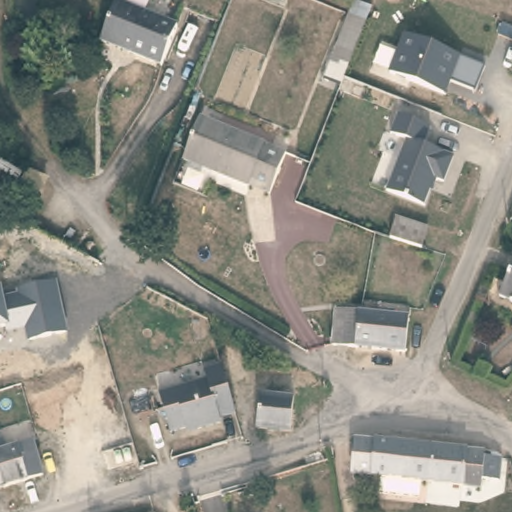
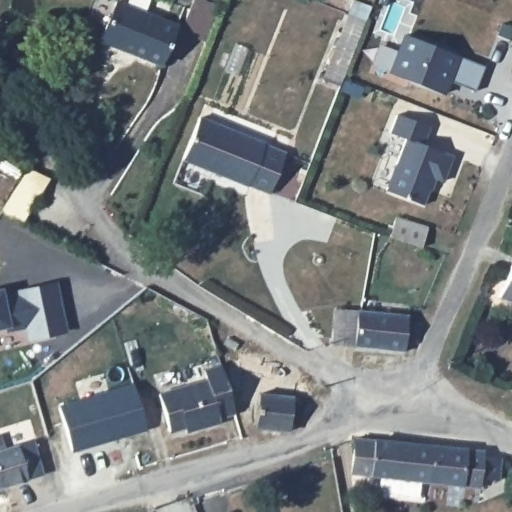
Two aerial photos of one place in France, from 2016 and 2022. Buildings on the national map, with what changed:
unchanged [(158,68),(98,43),(115,2),(175,27),(158,68)]
unchanged [(353,2),(370,9),(337,87),(322,81),(353,2)]
unchanged [(476,89),(451,81),(445,96),(388,71),(404,34),(458,56),(485,67),(476,89)]
unchanged [(424,144),(445,152),(445,157),(453,160),(446,184),(437,181),(432,194),(427,192),(424,206),(385,192),(404,140),(389,135),(397,114),(430,126),(424,144)]
unchanged [(265,195),(182,161),(197,122),(280,157),(265,195)]
unchanged [(397,219),(427,230),(419,254),(389,242),(397,219)]
unchanged [(512,261),(512,304),(500,301),(512,261)]
unchanged [(5,328),(0,329),(0,291),(3,290),(5,301),(18,297),(16,292),(57,283),(68,333),(28,344),(24,331),(7,334),(5,328)]
unchanged [(332,304),(357,306),(357,308),(354,345),(329,345),(329,342),(332,304)]
unchanged [(354,347),(354,345),(357,308),(410,313),(408,352),(354,347)]
unchanged [(239,414),(224,420),(223,424),(203,429),(202,425),(171,434),(160,398),(209,383),(206,374),(222,369),(239,414)]
new [(133,383),(147,430),(72,452),(59,406),(133,383)]
unchanged [(290,430),(257,427),(260,395),(292,397),(290,430)]
unchanged [(416,486),(344,477),(350,435),(419,445),(416,486)]
unchanged [(28,441),(38,477),(0,490),(0,449),(28,441)]
unchanged [(473,452),(473,460),(486,461),(485,483),(468,482),(466,492),(416,486),(419,445),(473,452)]

